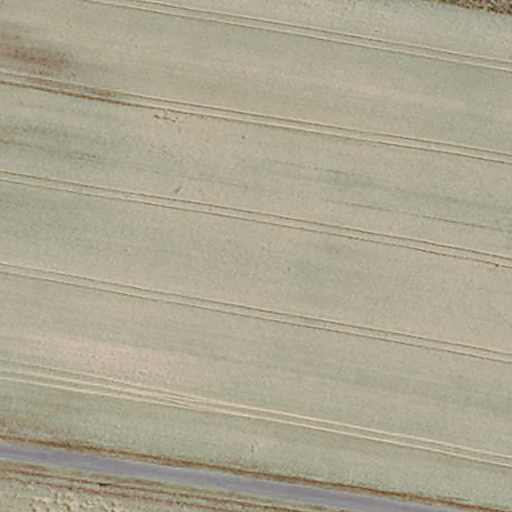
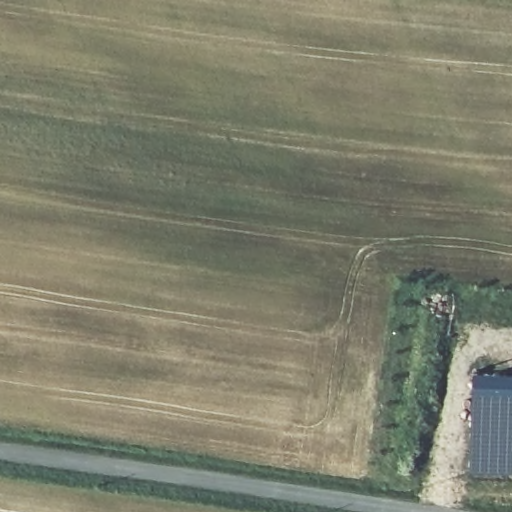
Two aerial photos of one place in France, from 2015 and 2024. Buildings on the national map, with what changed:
new [(474,370),(512,371),(512,472),(471,471),(474,370)]

